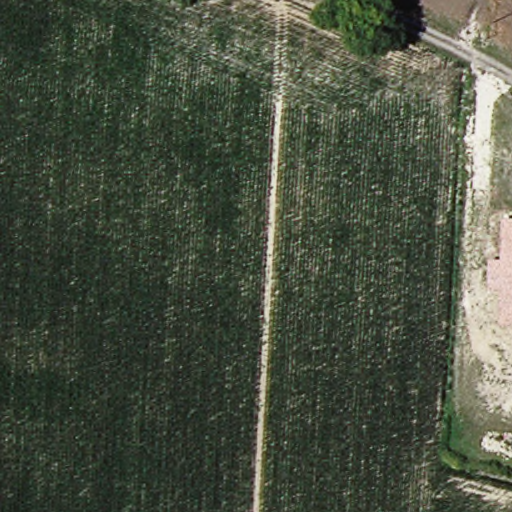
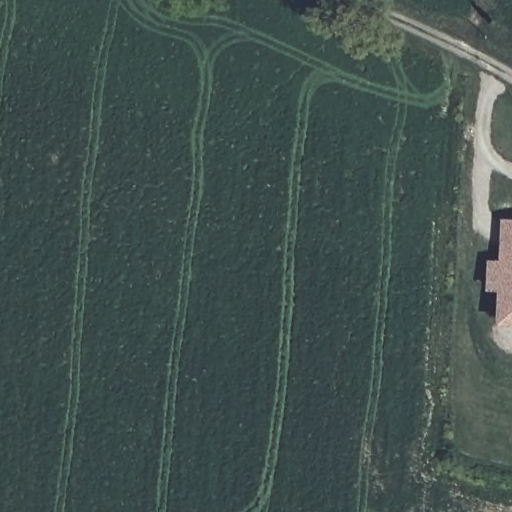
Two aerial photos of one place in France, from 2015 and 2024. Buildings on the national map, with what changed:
unchanged [(497,329),(498,294),(487,293),(488,263),(498,263),(499,220),(512,221),(512,329),(497,329)]

